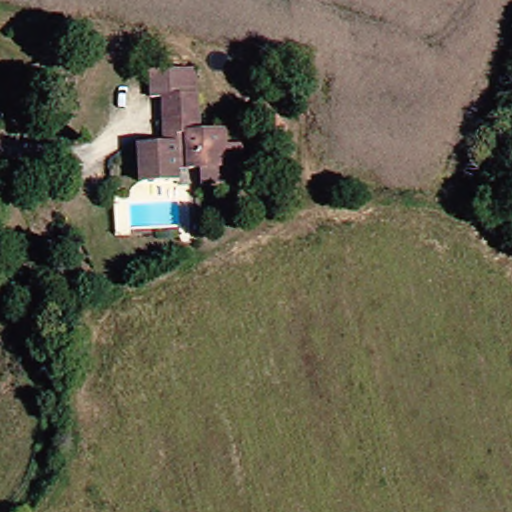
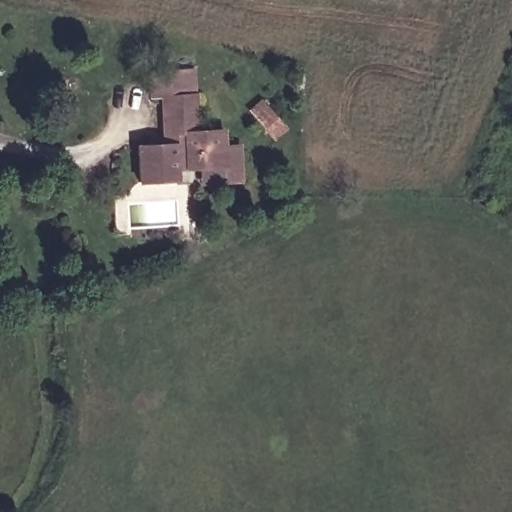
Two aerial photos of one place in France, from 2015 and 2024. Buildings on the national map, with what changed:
unchanged [(164,102),(157,101),(155,87),(155,70),(191,69),(193,88),(195,97),(198,97),(202,133),(225,135),(227,169),(181,169),(181,188),(146,187),(143,144),(168,145),(167,134),(164,102)]

